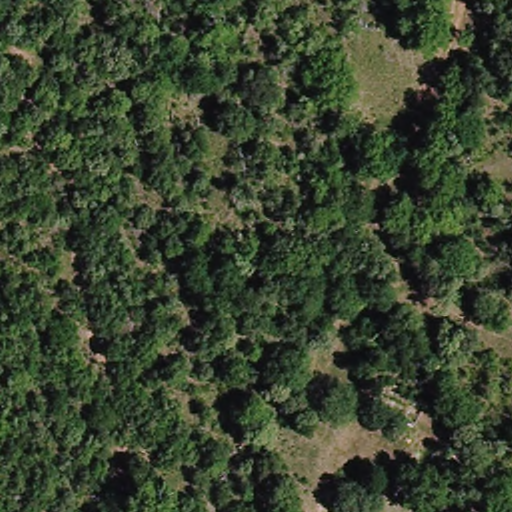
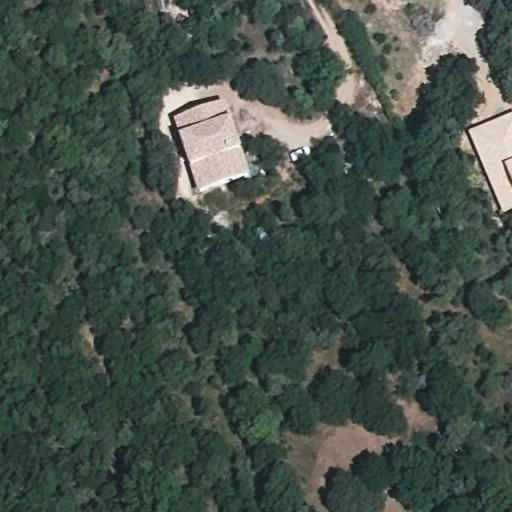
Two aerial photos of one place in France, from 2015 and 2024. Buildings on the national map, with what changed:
new [(177,120),(226,105),(250,179),(201,195),(184,140),(177,120)]
new [(503,217),(469,135),(512,115),(512,213),(503,217)]

